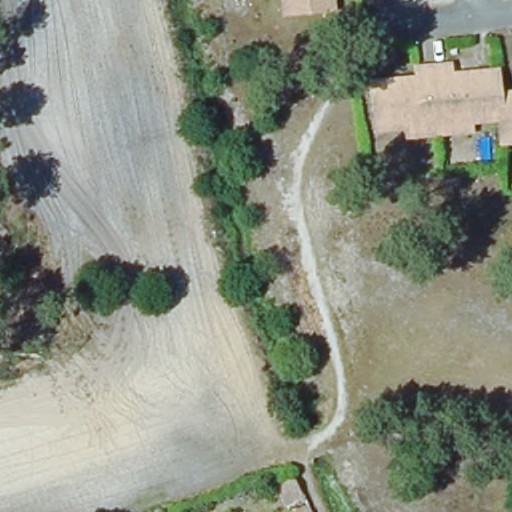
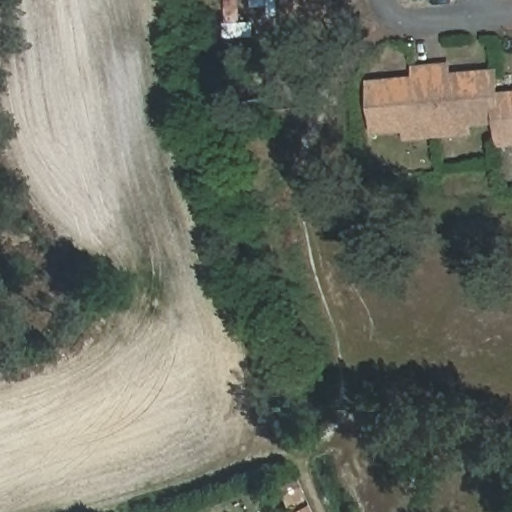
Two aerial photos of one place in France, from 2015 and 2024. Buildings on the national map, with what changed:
unchanged [(284,25),(281,0),(337,0),(338,17),(284,25)]
unchanged [(504,153),(499,123),(475,126),(475,138),(408,145),(407,132),(375,135),(372,85),(417,80),(414,70),(454,65),(456,78),(502,74),(503,95),(512,94),(512,152),(504,153)]
unchanged [(299,504),(285,509),(279,492),(293,487),(299,504)]

